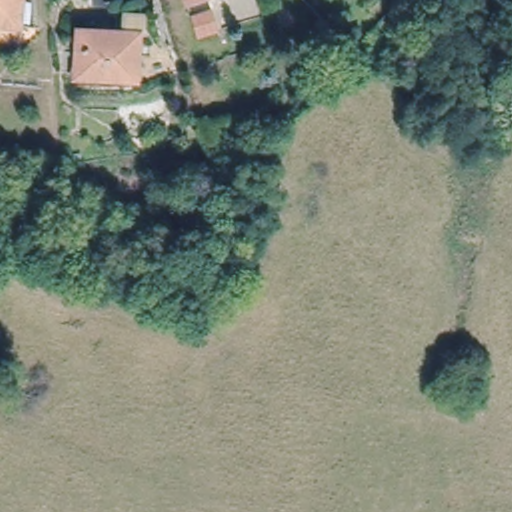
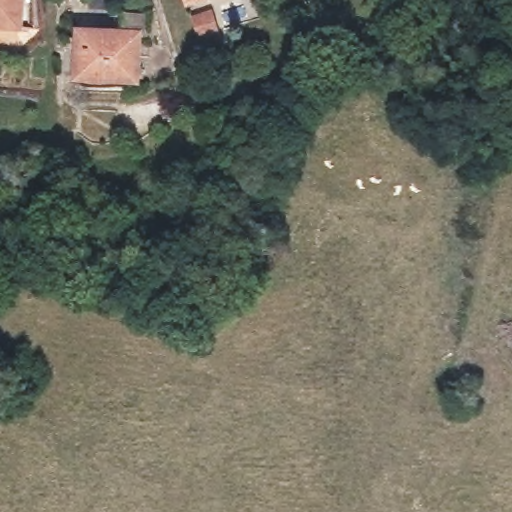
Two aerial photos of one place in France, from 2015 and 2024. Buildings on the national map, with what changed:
unchanged [(0,26),(0,0),(21,0),(19,28),(0,26)]
unchanged [(187,4),(186,0),(199,0),(187,4)]
unchanged [(192,18),(210,12),(216,33),(198,38),(192,18)]
unchanged [(138,36),(136,82),(77,79),(79,33),(138,36)]

